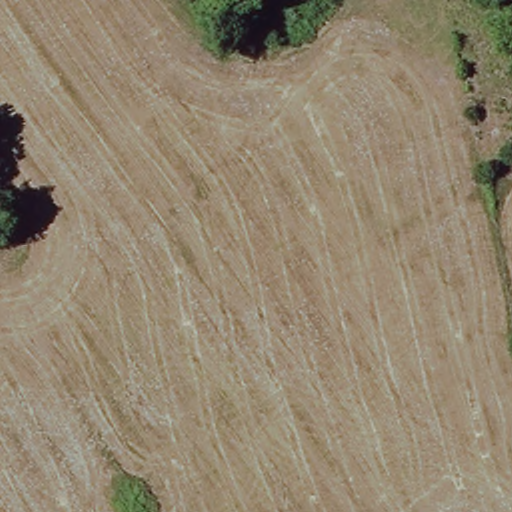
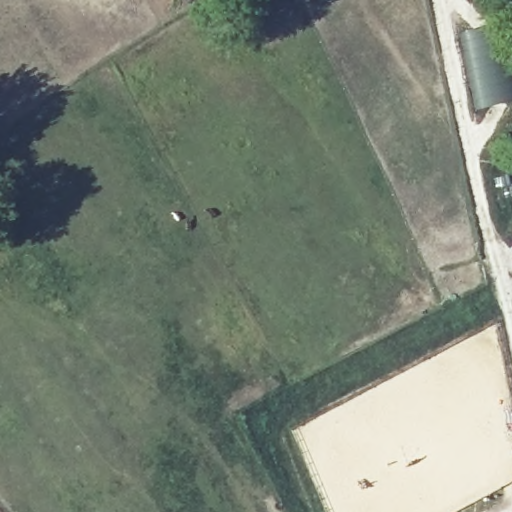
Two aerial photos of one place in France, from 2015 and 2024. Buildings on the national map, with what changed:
new [(458,35),(501,26),(512,78),(512,103),(474,111),(458,35)]

